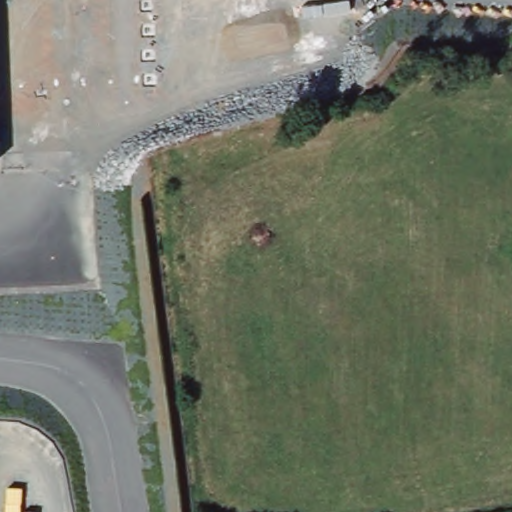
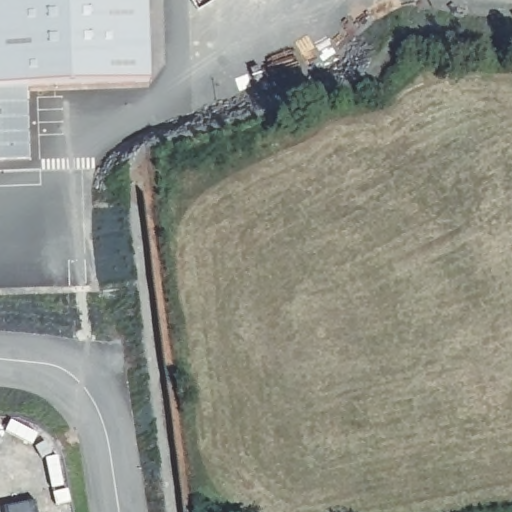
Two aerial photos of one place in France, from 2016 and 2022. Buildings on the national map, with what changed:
new [(0,85),(0,0),(146,0),(149,80),(0,85)]

